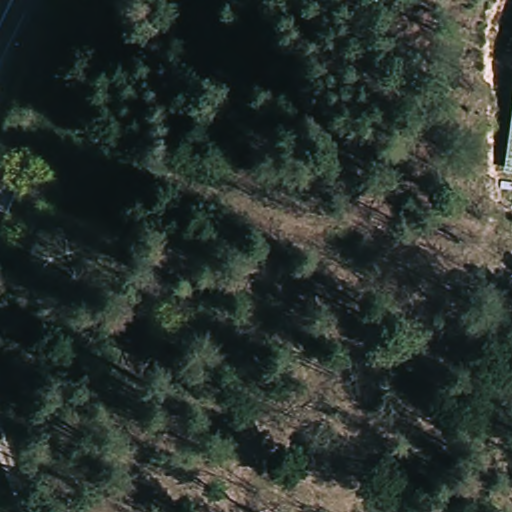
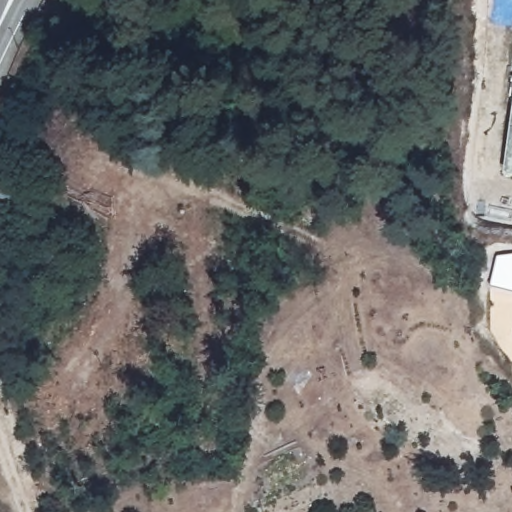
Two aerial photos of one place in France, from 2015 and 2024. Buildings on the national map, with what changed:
unchanged [(512,149),(512,175),(508,174),(512,149)]
unchanged [(7,213),(0,210),(0,182),(19,190),(7,213)]
new [(490,285),(497,255),(512,254),(512,292),(490,285)]

